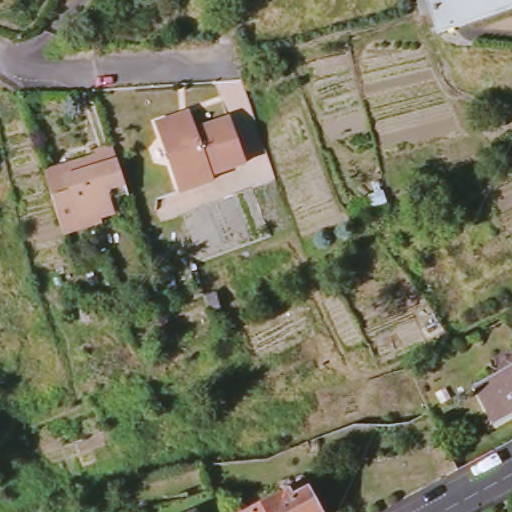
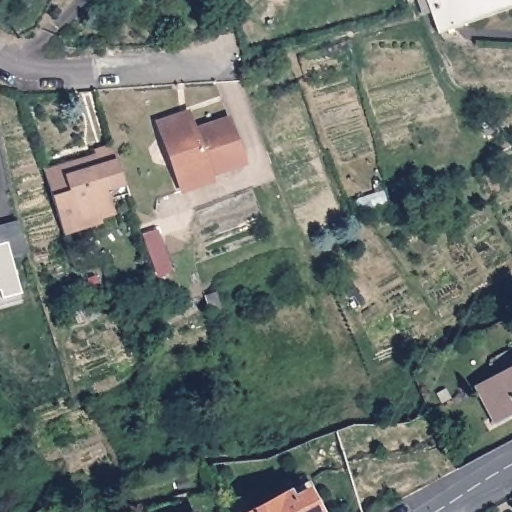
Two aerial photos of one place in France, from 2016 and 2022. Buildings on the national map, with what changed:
unchanged [(428,0),(512,0),(512,6),(439,31),(430,5),(428,0)]
unchanged [(212,178),(181,188),(158,119),(177,113),(189,109),(192,118),(195,127),(229,115),(244,160),(210,172),(212,178)]
unchanged [(47,178),(89,164),(87,159),(97,156),(95,151),(112,145),(128,193),(110,199),(114,213),(81,224),(82,228),(64,234),(47,178)]
new [(17,220),(25,251),(11,254),(21,294),(21,300),(0,306),(0,225),(17,220)]
unchanged [(495,421),(474,384),(512,364),(512,412),(495,421)]
unchanged [(288,491),(292,498),(308,490),(320,512),(249,512),(288,491)]

